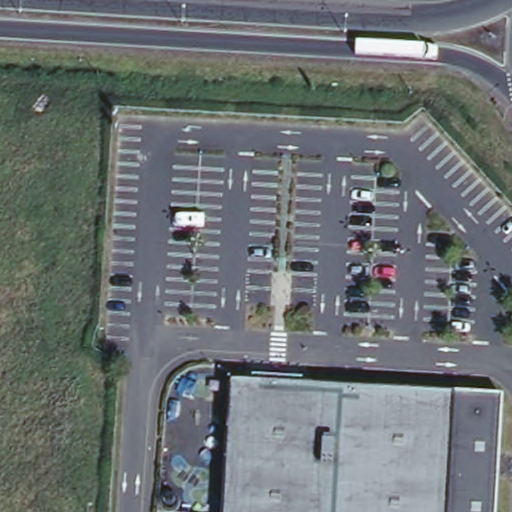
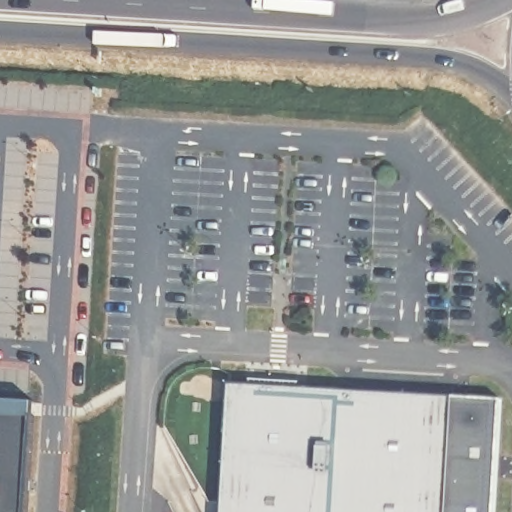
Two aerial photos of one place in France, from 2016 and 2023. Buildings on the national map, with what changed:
unchanged [(231,383),(455,398),(444,512),(221,512),(231,383)]
unchanged [(455,398),(503,401),(496,512),(444,512),(455,398)]
new [(32,512),(0,512),(0,418),(37,420),(32,512)]

